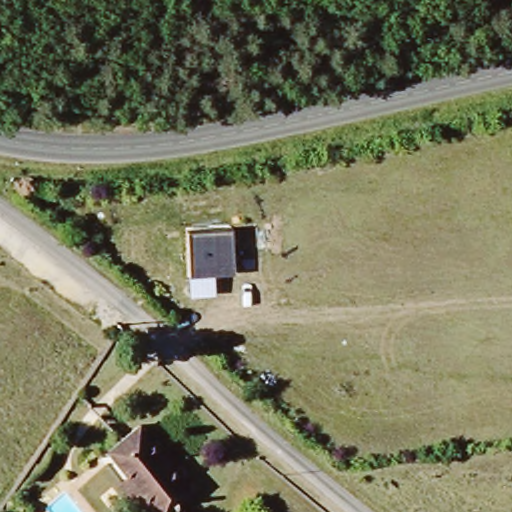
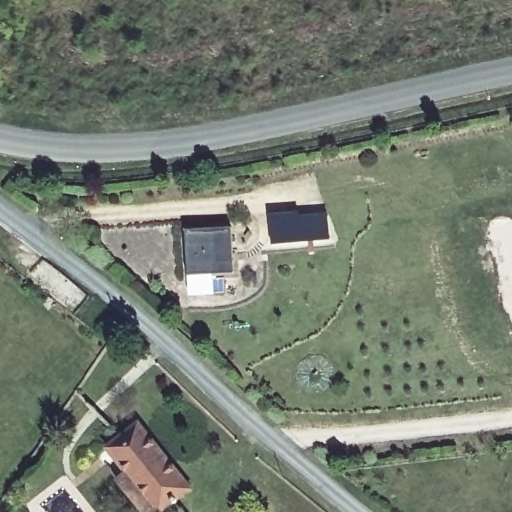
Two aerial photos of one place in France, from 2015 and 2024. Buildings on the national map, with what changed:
new [(332,215),(332,239),(321,239),(304,240),(273,241),(272,214),(302,213),(302,216),(320,215),(332,215)]
unchanged [(190,297),(189,277),(187,230),(233,229),(234,273),(215,273),(216,295),(190,297)]
unchanged [(159,512),(145,512),(117,479),(126,470),(105,446),(134,421),(190,485),(159,512)]

